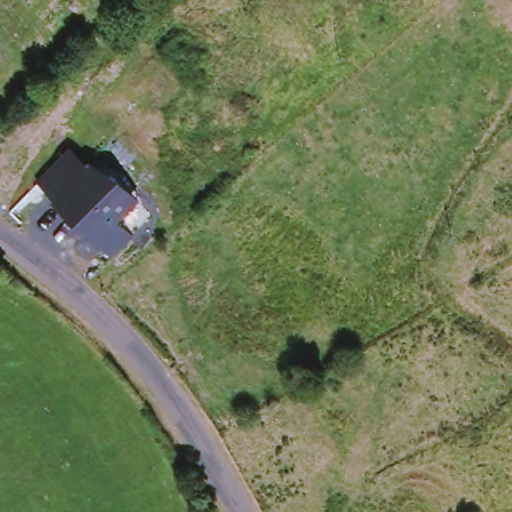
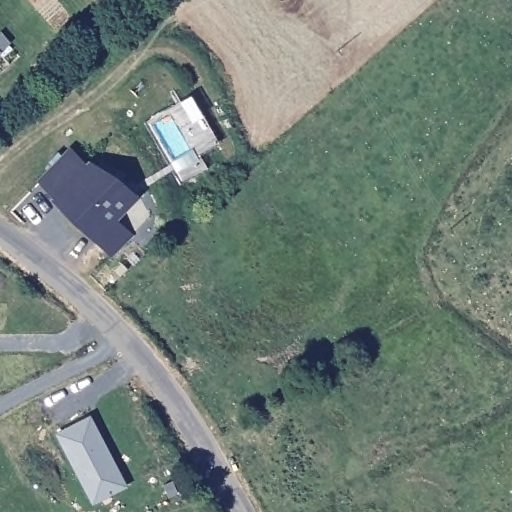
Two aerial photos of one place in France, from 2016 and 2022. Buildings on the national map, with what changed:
unchanged [(113,253),(97,237),(83,222),(72,211),(57,195),(59,193),(44,177),(75,147),(90,162),(92,160),(118,176),(133,202),(117,217),(133,233),(113,253)]
new [(90,411),(123,477),(91,493),(58,427),(90,411)]

